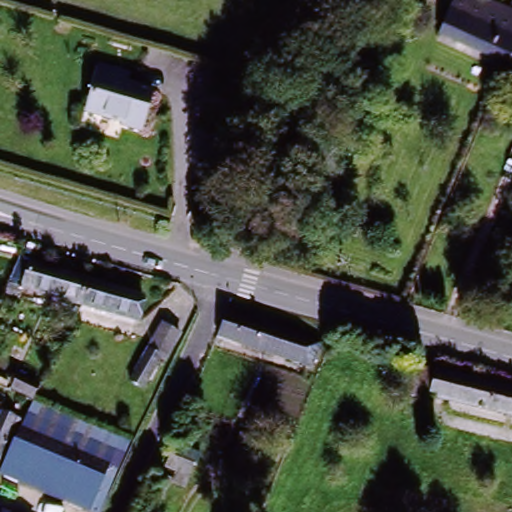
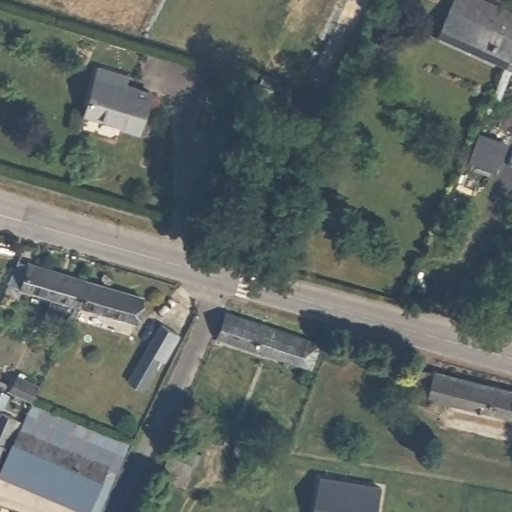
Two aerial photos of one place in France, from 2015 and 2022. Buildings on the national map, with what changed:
unchanged [(510,66),(441,36),(453,8),(512,33),(512,63),(510,66)]
unchanged [(510,66),(512,63),(512,67),(510,66)]
unchanged [(136,136),(120,131),(120,129),(80,117),(92,80),(95,73),(125,81),(122,89),(147,97),(136,136)]
unchanged [(74,305),(25,291),(32,267),(82,281),(74,305)]
unchanged [(137,297),(132,320),(74,305),(82,281),(137,297)]
unchanged [(321,339),(312,368),(257,353),(212,342),(222,311),(321,339)]
unchanged [(126,382),(144,351),(158,326),(180,339),(167,364),(161,360),(142,392),(126,382)]
unchanged [(425,396),(423,403),(403,398),(412,362),(432,367),(512,387),(512,417),(425,396)]
unchanged [(0,475),(0,474),(0,458),(0,414),(17,422),(22,409),(122,450),(113,471),(96,510),(95,512),(76,512),(0,475)]
new [(325,481),(387,491),(384,512),(321,512),(325,481)]

